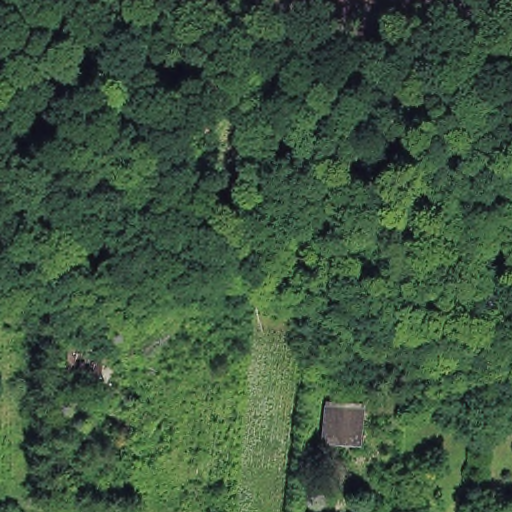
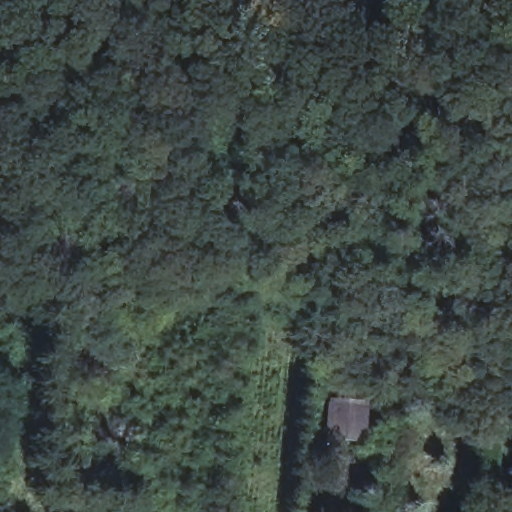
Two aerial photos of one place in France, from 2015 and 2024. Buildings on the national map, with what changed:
unchanged [(99,333),(97,366),(66,364),(67,331),(99,333)]
unchanged [(365,409),(364,435),(333,433),(334,407),(365,409)]

